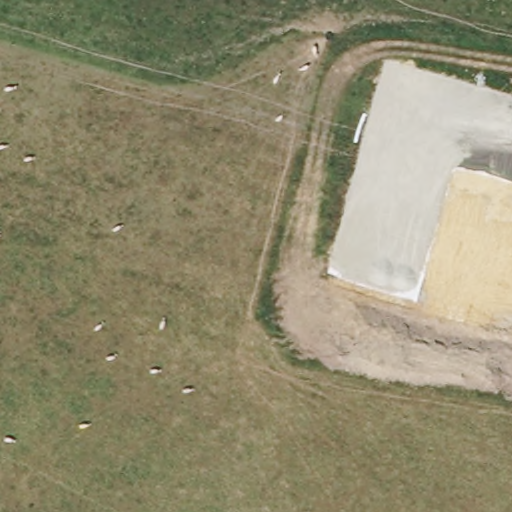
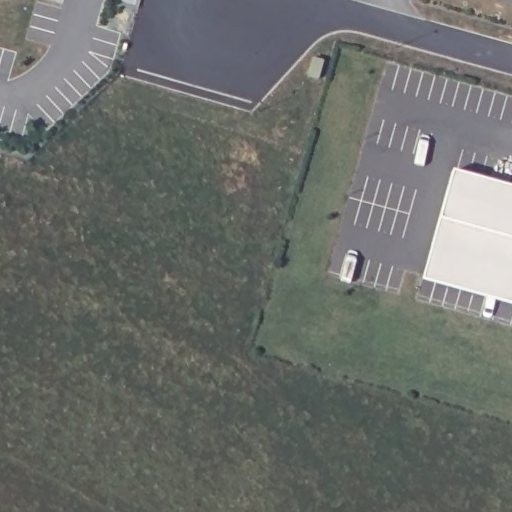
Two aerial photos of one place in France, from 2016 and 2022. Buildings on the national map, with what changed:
new [(452,173),(512,189),(512,242),(438,221),(452,173)]
new [(438,221),(512,242),(512,306),(422,281),(438,221)]

